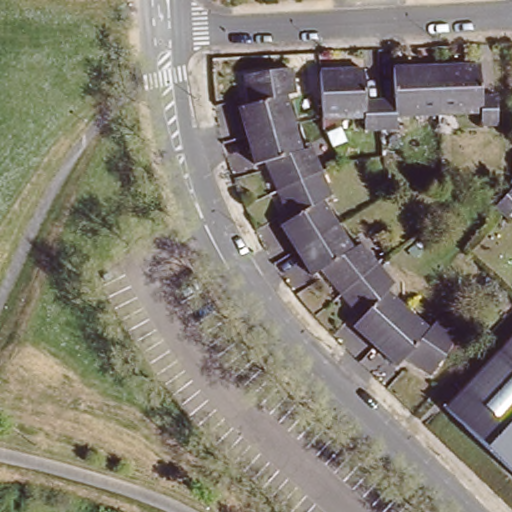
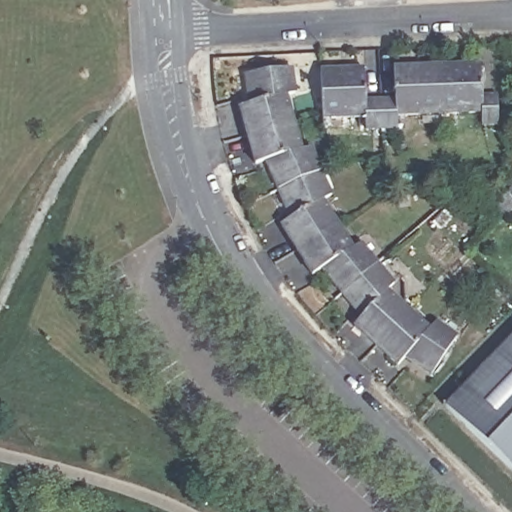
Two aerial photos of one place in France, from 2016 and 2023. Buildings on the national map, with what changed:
unchanged [(479,110),(397,113),(396,122),(364,124),(364,115),(355,115),(354,80),(321,81),(320,66),(361,65),(362,91),(394,90),(394,64),(436,62),(478,60),(479,87),(498,86),(498,118),(481,119),(479,110)]
unchanged [(287,105),(279,105),(279,133),(241,139),(239,106),(246,106),(245,74),(286,72),(286,86),(287,105)]
unchanged [(355,115),(321,116),(321,81),(354,80),(355,115)]
unchanged [(294,158),(299,183),(263,198),(256,167),(247,169),(241,139),(279,133),(286,160),(294,158)]
unchanged [(506,215),(492,201),(512,181),(512,208),(506,215)]
unchanged [(313,204),(307,208),(321,232),(291,258),(274,229),(279,225),(263,198),(299,183),(313,204)]
unchanged [(346,247),(366,268),(339,297),(319,276),(313,282),(291,258),(321,232),(341,251),(346,247)]
unchanged [(389,288),(384,294),(406,315),(378,344),(356,325),(361,319),(339,297),(366,268),(389,288)]
unchanged [(426,334),(432,328),(452,347),(424,376),(404,358),(399,363),(378,344),(406,315),(426,334)]
unchanged [(447,408),(512,337),(512,470),(447,408)]

